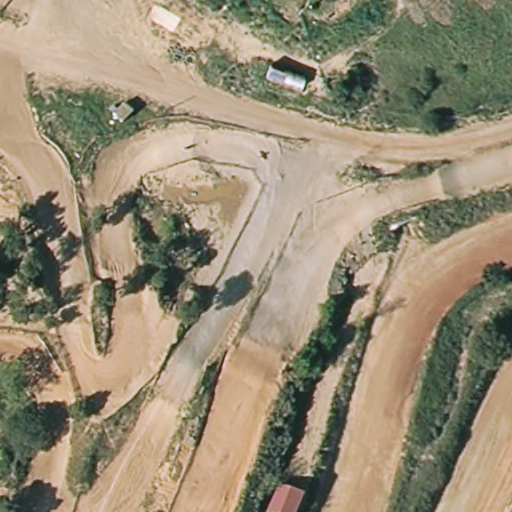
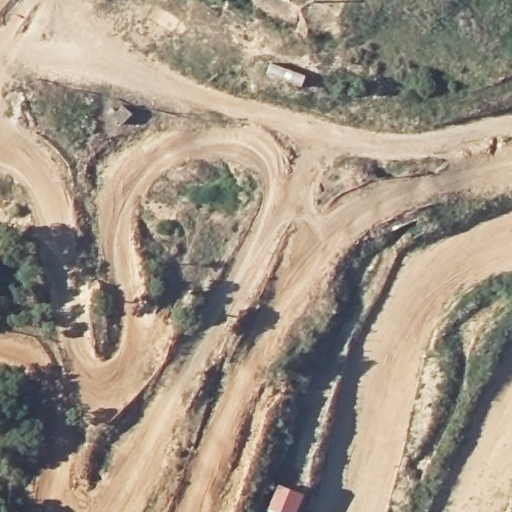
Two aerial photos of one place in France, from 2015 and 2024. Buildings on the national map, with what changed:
unchanged [(297,512),(266,512),(277,485),(290,491),(304,497),(297,512)]

